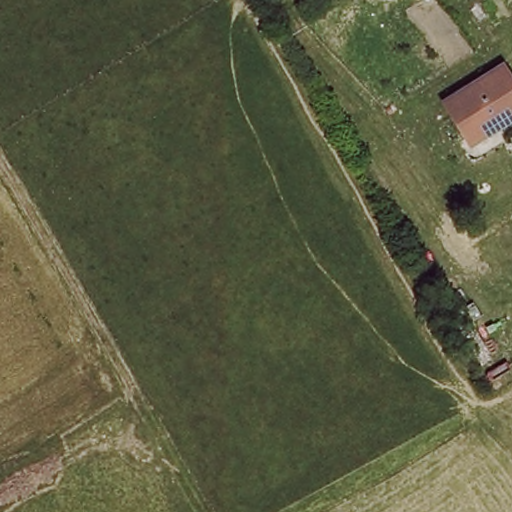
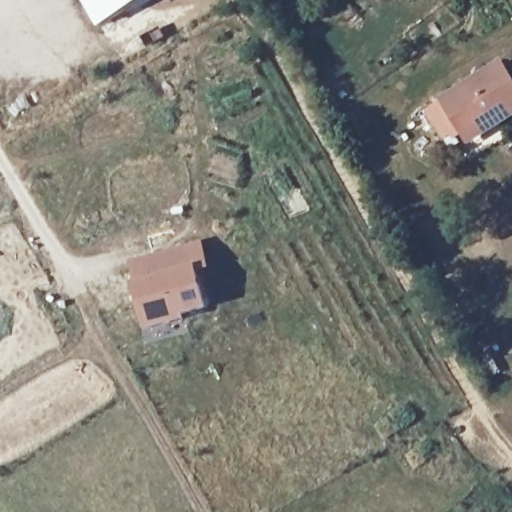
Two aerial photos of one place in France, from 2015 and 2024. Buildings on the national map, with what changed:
new [(100,30),(83,0),(153,0),(100,30)]
unchanged [(507,60),(512,69),(512,116),(492,128),(488,122),(460,138),(437,99),(507,60)]
new [(204,243),(212,269),(197,273),(210,311),(185,317),(186,324),(146,332),(134,285),(130,262),(204,243)]

